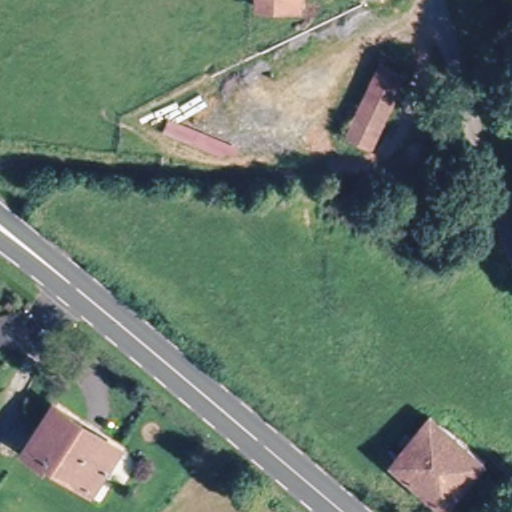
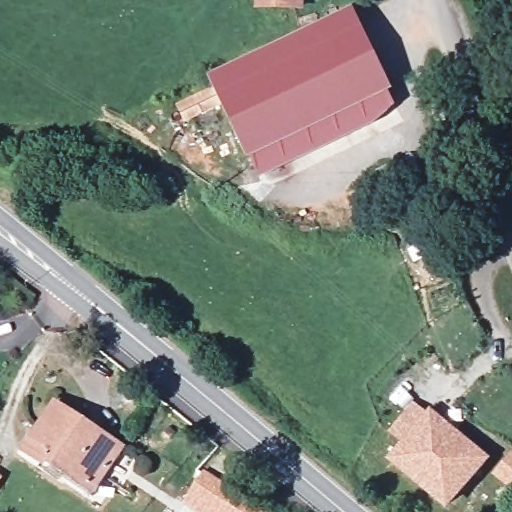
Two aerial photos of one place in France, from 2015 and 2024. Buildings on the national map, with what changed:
unchanged [(297,12),(257,5),(257,0),(299,0),(297,12)]
new [(207,75),(352,6),(393,90),(246,160),(207,75)]
unchanged [(54,455),(49,460),(30,445),(60,403),(125,446),(106,472),(98,484),(54,455)]
unchanged [(487,461),(453,508),(396,465),(407,450),(412,443),(433,415),(445,425),(487,461)]

